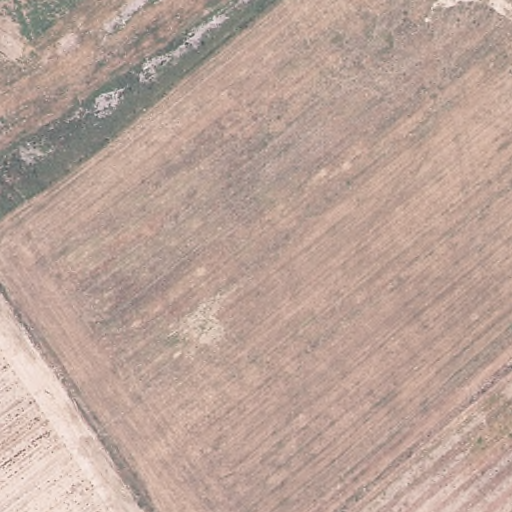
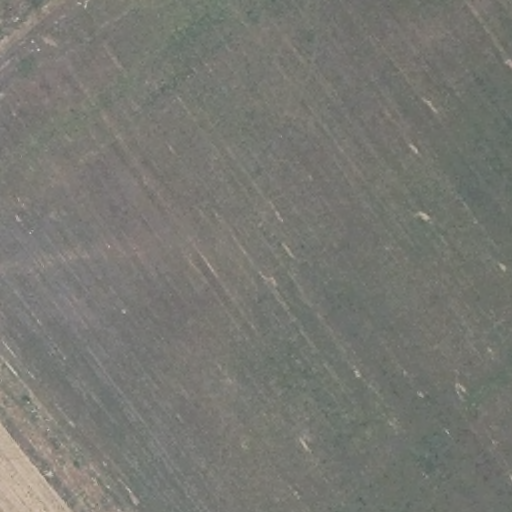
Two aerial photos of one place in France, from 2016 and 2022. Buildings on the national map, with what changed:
[]

